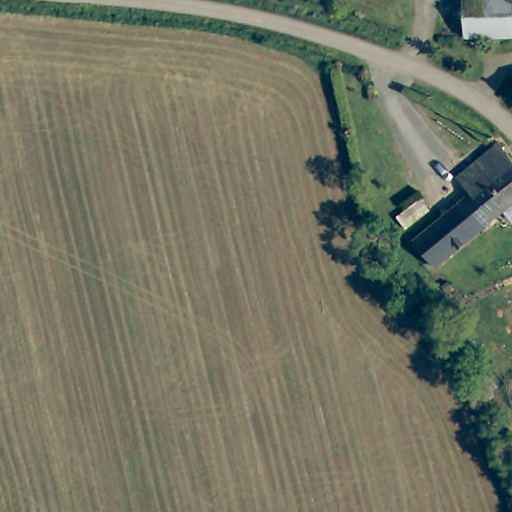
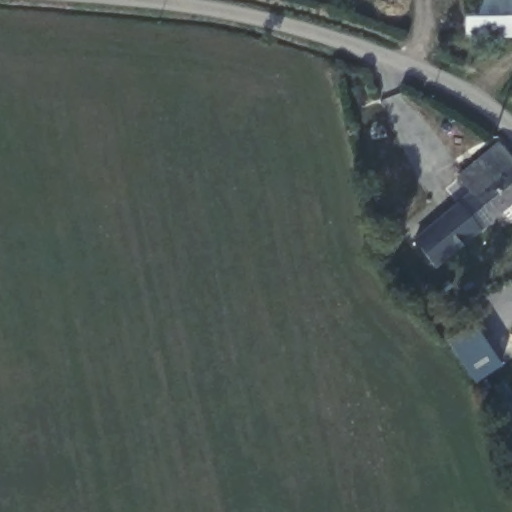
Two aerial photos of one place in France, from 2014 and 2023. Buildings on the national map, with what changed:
unchanged [(467,0),(512,0),(512,37),(467,37),(467,0)]
unchanged [(454,206),(473,190),(459,176),(501,141),(509,151),(512,155),(512,203),(497,217),(478,232),(438,266),(417,239),(454,206)]
new [(470,323),(499,367),(474,382),(446,340),(470,323)]

